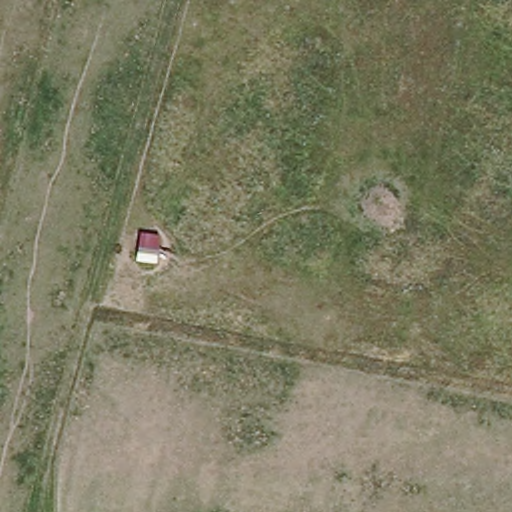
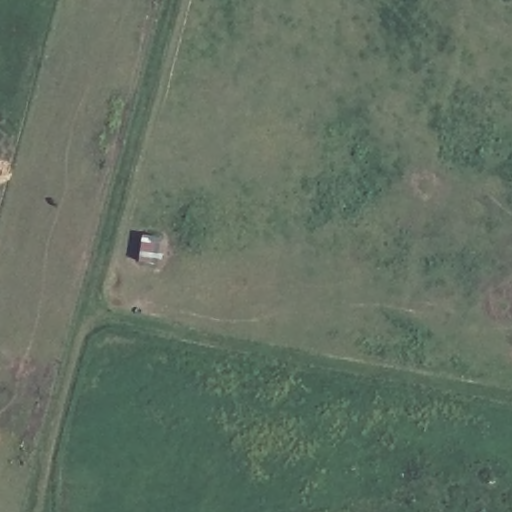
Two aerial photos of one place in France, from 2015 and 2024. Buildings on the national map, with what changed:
[]

